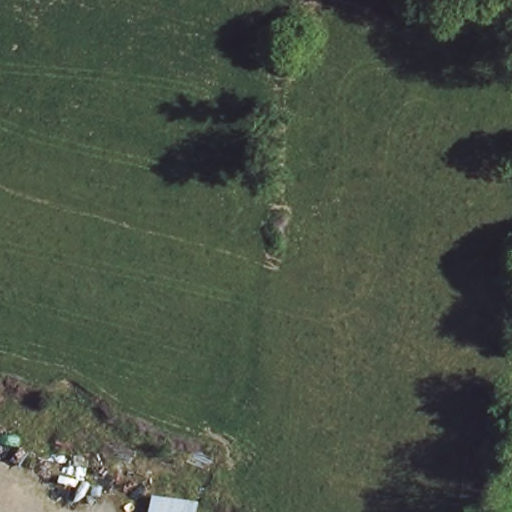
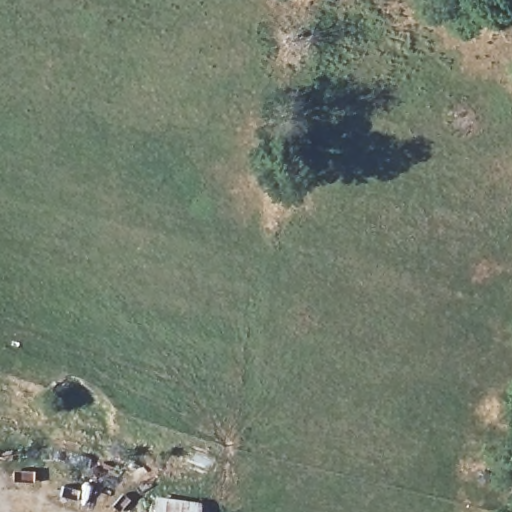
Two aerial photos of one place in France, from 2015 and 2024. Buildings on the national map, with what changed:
unchanged [(205,506),(204,512),(151,512),(153,499),(205,506)]

